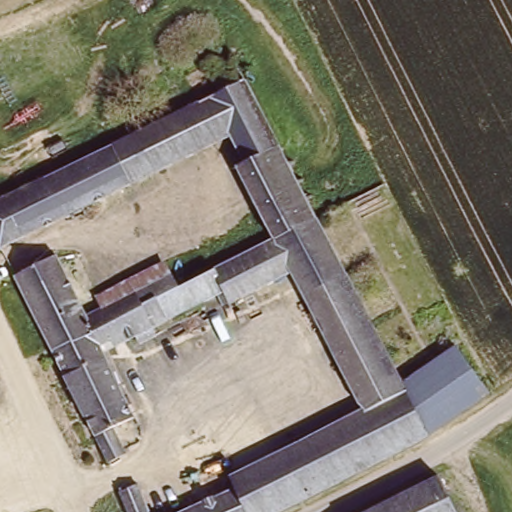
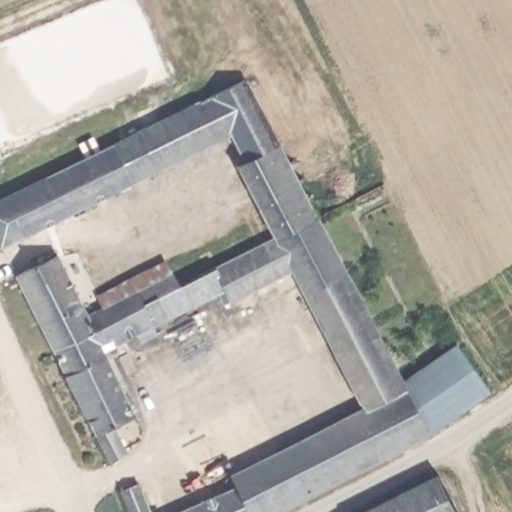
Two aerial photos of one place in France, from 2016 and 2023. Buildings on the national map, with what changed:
unchanged [(318,218),(277,239),(241,168),(245,165),(231,137),(213,99),(248,82),(318,218)]
unchanged [(133,186),(115,148),(202,105),(213,99),(231,137),(133,186)]
unchanged [(133,186),(2,251),(0,248),(0,205),(115,148),(133,186)]
unchanged [(320,222),(406,389),(407,391),(366,412),(296,274),(235,306),(233,302),(226,306),(221,297),(155,330),(158,336),(143,344),(140,337),(115,350),(112,344),(103,349),(106,354),(138,419),(118,430),(131,457),(112,467),(54,353),(112,324),(180,288),(277,239),(318,218),(320,222)]
unchanged [(112,324),(54,353),(17,280),(58,259),(88,318),(104,310),(112,324)]
unchanged [(180,288),(112,324),(104,310),(99,299),(169,265),(180,288)]
unchanged [(431,437),(407,391),(406,389),(460,351),(493,392),(431,437)]
unchanged [(431,437),(325,488),(304,443),(366,412),(407,391),(431,437)]
unchanged [(304,443),(325,488),(277,512),(183,512),(237,488),(233,478),(304,443)]
unchanged [(365,512),(437,475),(456,512),(365,512)]
unchanged [(142,487),(152,512),(131,512),(124,494),(142,487)]

